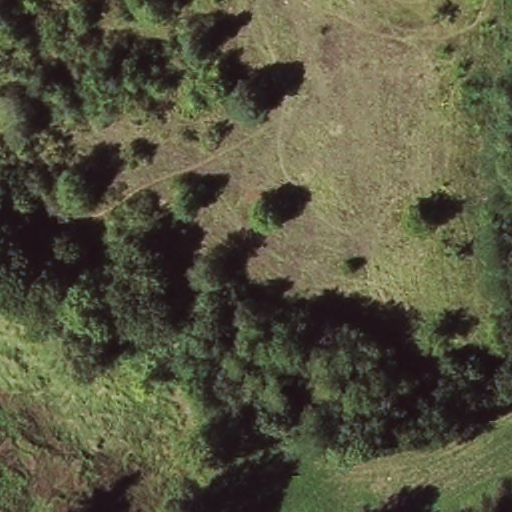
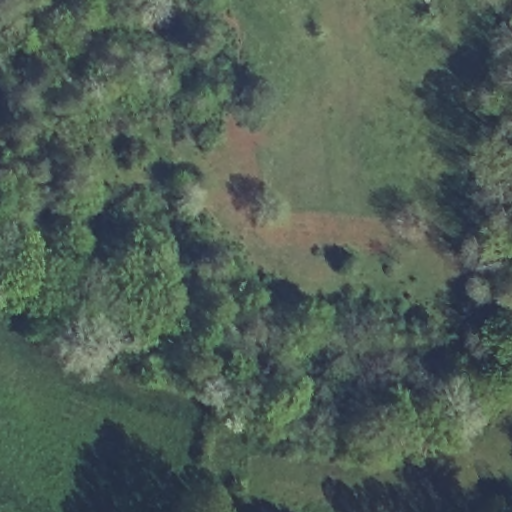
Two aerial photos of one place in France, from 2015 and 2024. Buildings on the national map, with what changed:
[]

